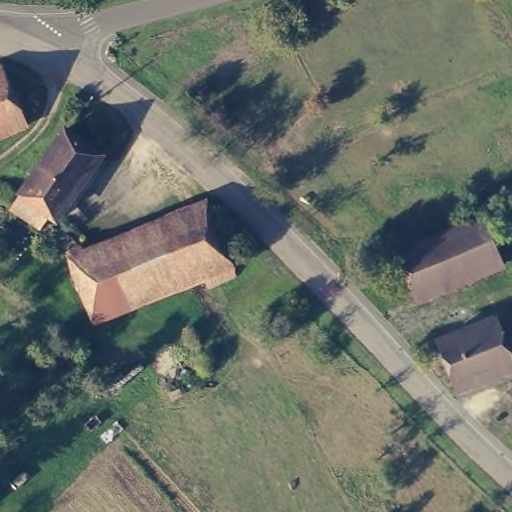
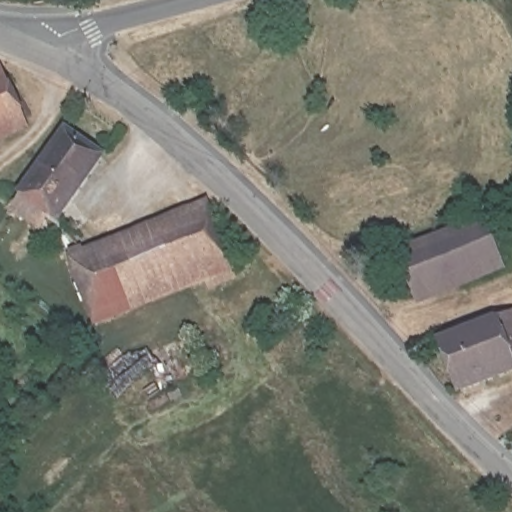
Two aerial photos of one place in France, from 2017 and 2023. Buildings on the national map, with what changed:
unchanged [(0,73),(0,66),(3,72),(0,73)]
unchanged [(0,73),(3,72),(25,122),(29,131),(0,144),(0,73)]
unchanged [(65,126),(104,153),(61,220),(53,213),(46,222),(16,201),(22,192),(65,126)]
unchanged [(73,262),(68,251),(206,195),(211,208),(73,262)]
unchanged [(101,325),(73,262),(211,208),(239,269),(101,325)]
unchanged [(416,301),(399,265),(487,228),(501,265),(416,301)]
unchanged [(512,318),(512,374),(466,394),(448,345),(512,318)]

